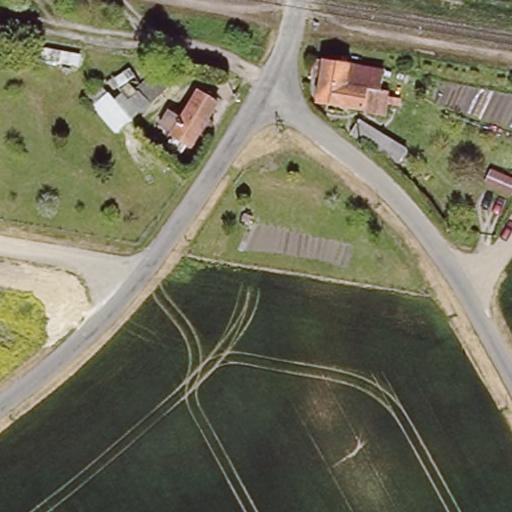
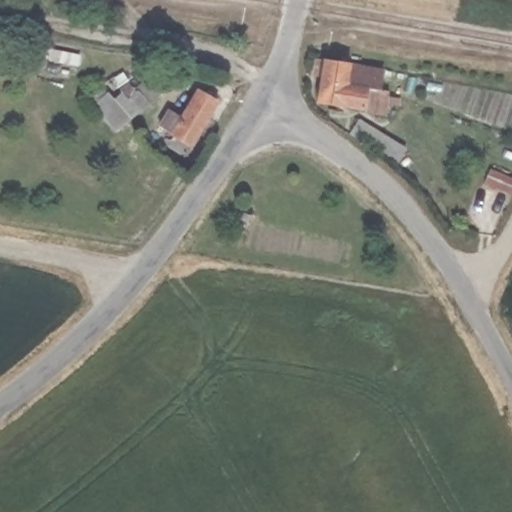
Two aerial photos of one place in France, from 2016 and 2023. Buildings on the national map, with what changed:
unchanged [(350,72),(385,79),(380,99),(368,96),(365,116),(317,108),(321,84),(315,83),(316,73),(323,75),(325,68),(350,72)]
unchanged [(165,79),(171,86),(164,92),(158,84),(165,79)]
unchanged [(220,109),(192,151),(161,131),(171,115),(183,123),(201,96),(220,109)]
unchanged [(135,125),(122,136),(103,111),(116,101),(135,125)]
unchanged [(367,123),(367,128),(371,128),(371,134),(358,133),(359,123),(367,123)]
unchanged [(510,195),(485,185),(490,170),(512,178),(512,192),(510,195)]

